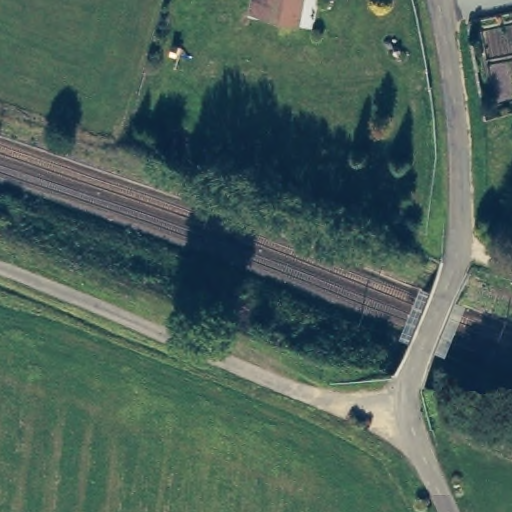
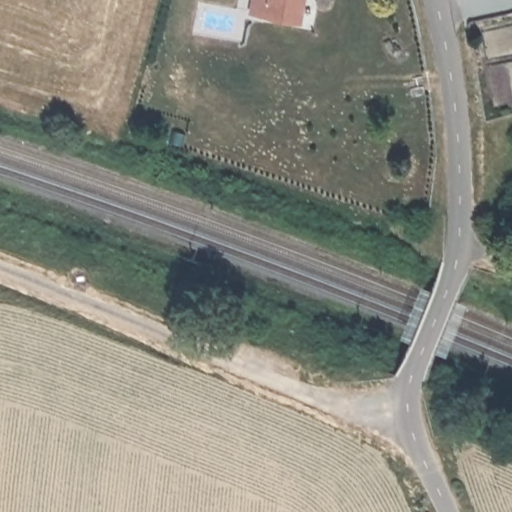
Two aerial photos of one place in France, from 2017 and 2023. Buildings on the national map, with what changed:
unchanged [(295,0),(292,25),(258,21),(246,19),(249,0),(295,0)]

